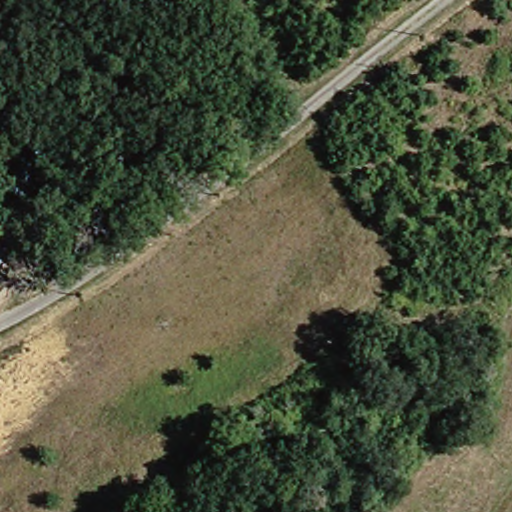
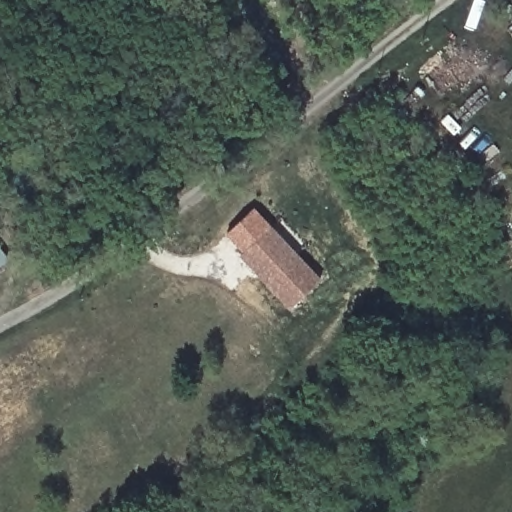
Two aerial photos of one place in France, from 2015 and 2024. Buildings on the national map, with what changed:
new [(239,255),(243,251),(226,234),(254,209),(322,278),(291,309),(239,255)]
unchanged [(11,266),(0,273),(0,254),(11,266)]

